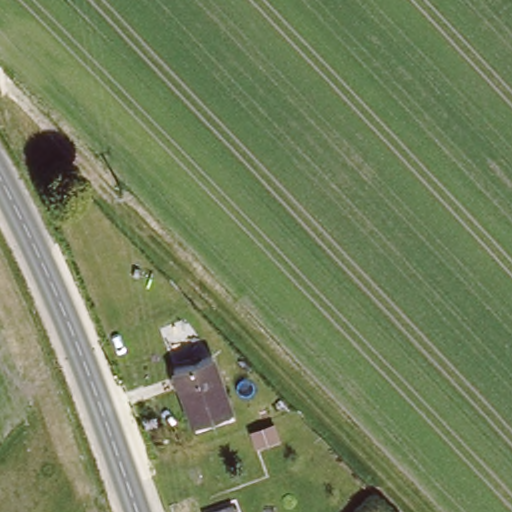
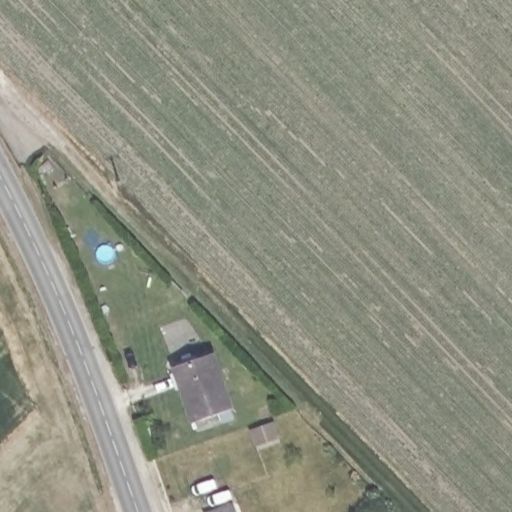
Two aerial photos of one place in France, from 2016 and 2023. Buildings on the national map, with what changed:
unchanged [(236,416),(197,431),(175,373),(214,358),(236,416)]
unchanged [(231,507),(233,512),(215,512),(231,507)]

